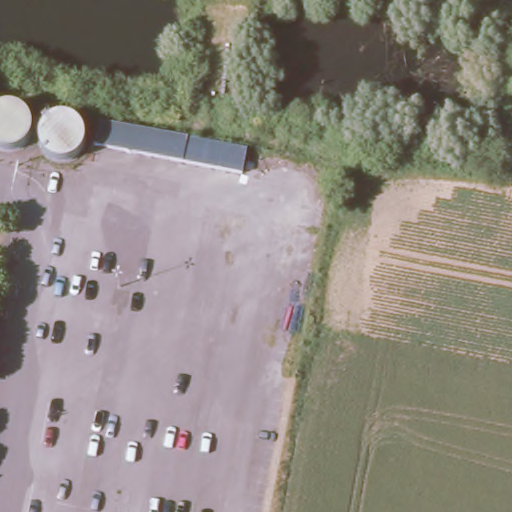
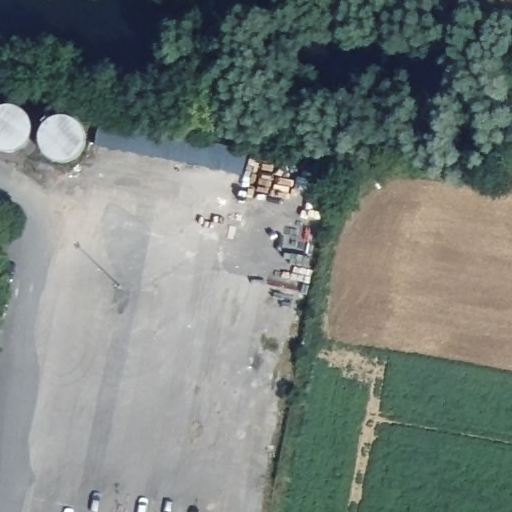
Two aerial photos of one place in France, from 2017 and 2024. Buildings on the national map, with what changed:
unchanged [(243,144),(238,168),(90,140),(95,115),(243,144)]

